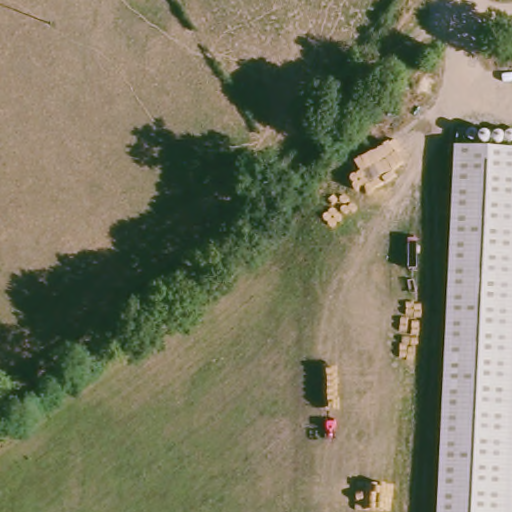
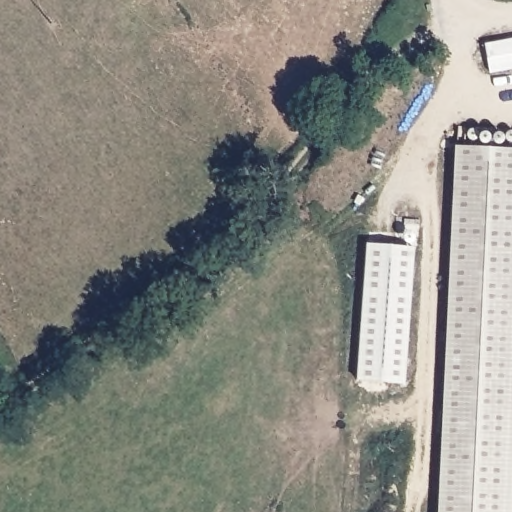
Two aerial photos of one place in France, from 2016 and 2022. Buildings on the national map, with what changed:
new [(512,68),(488,74),(482,47),(512,40),(512,68)]
unchanged [(454,149),(465,149),(512,151),(512,512),(438,512),(454,149)]
new [(367,244),(414,247),(404,385),(356,381),(367,244)]

